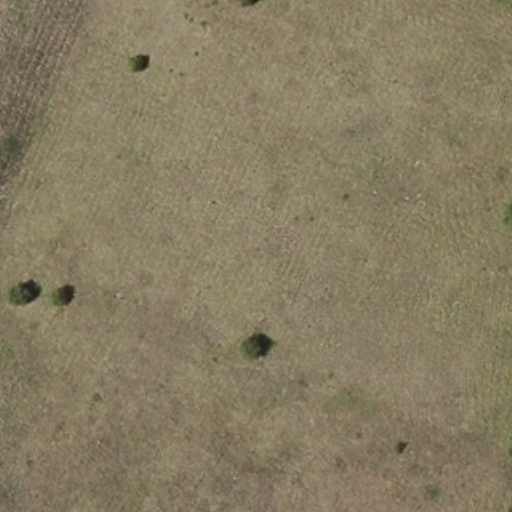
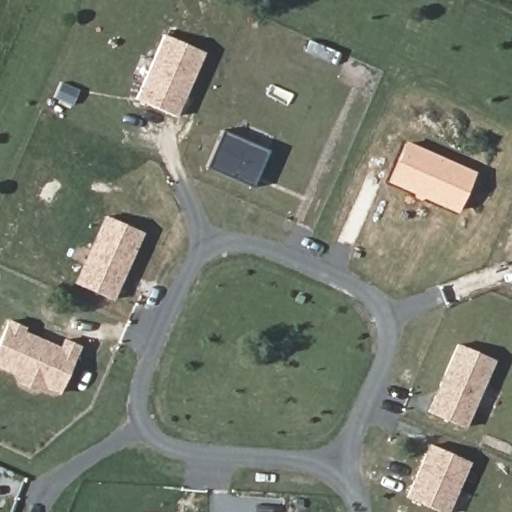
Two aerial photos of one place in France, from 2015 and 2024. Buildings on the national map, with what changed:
new [(173,116),(138,100),(166,36),(201,51),(173,116)]
new [(253,187),(206,167),(223,131),(269,151),(253,187)]
new [(458,213),(389,182),(407,141),(475,172),(458,213)]
new [(113,300),(74,283),(104,217),(143,232),(113,300)]
new [(59,348),(63,338),(80,345),(58,395),(18,384),(14,375),(0,369),(0,340),(7,321),(59,348)]
new [(466,428),(427,411),(456,343),(495,361),(466,428)]
new [(469,463),(448,512),(441,512),(406,497),(429,445),(469,463)]

